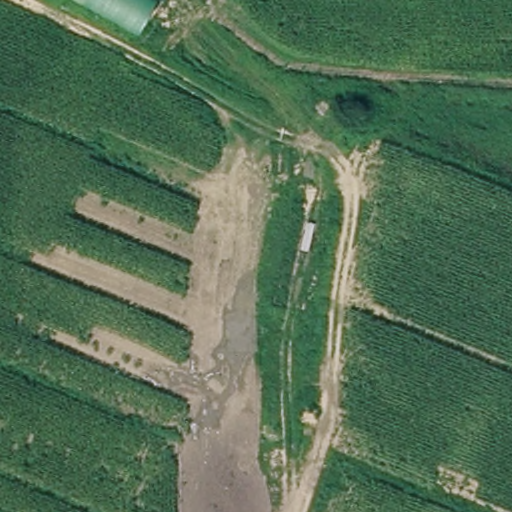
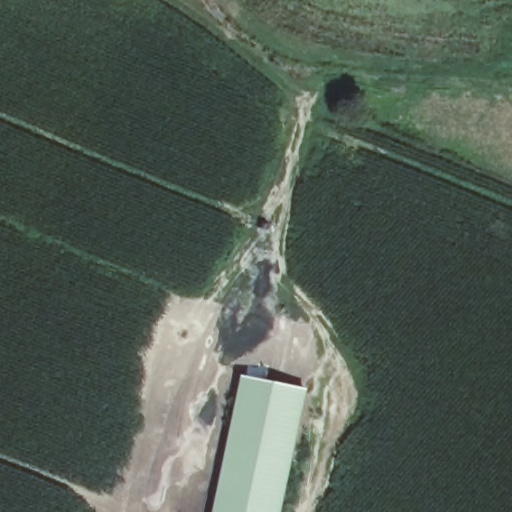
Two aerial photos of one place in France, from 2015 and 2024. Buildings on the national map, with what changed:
new [(307,388),(281,512),(214,512),(242,375),(307,388)]

